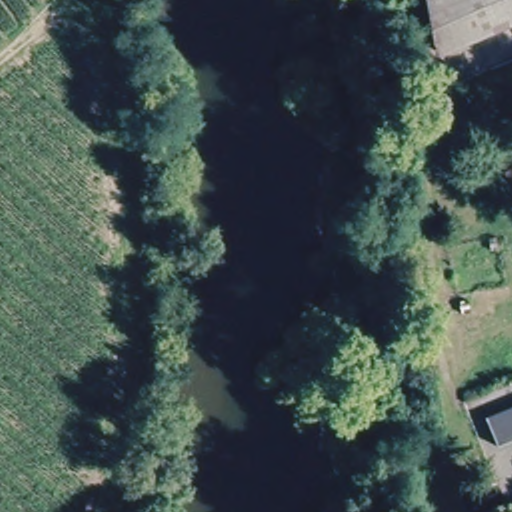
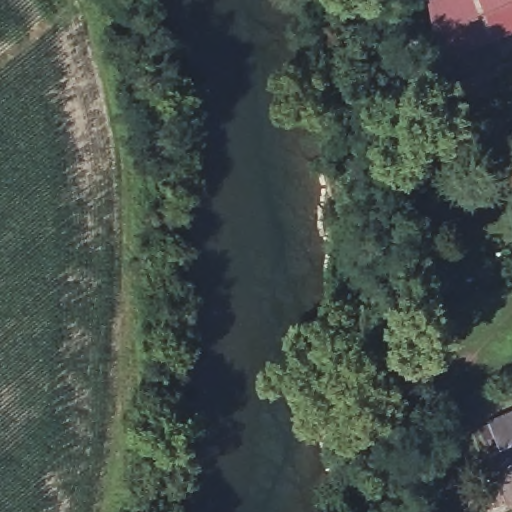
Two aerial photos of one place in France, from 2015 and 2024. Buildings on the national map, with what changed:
unchanged [(433,0),(512,0),(512,22),(505,25),(486,32),(443,48),(437,37),(433,0)]
unchanged [(491,417),(512,408),(512,441),(503,444),(491,417)]

